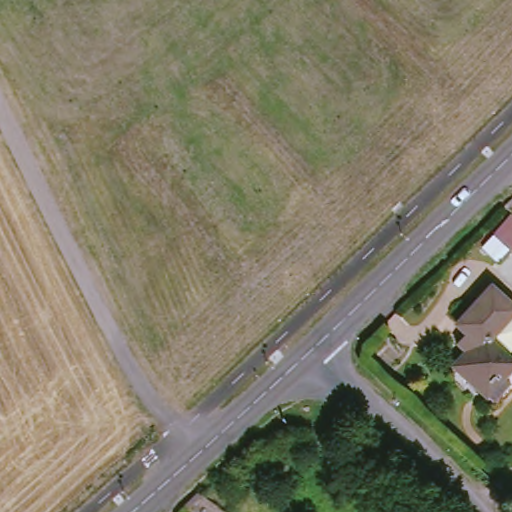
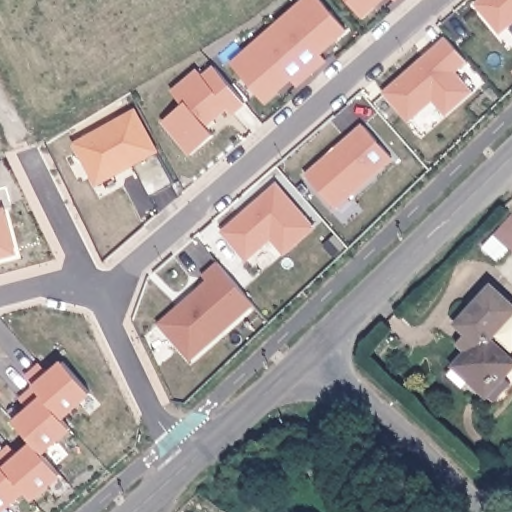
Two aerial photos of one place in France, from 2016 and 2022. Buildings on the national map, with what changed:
new [(303,0),(320,0),(346,30),(320,53),(326,60),(297,86),(291,79),(264,102),(231,64),(303,0)]
new [(362,17),(347,0),(382,0),(362,17)]
new [(495,26),(478,6),(485,0),(512,0),(512,22),(507,27),(495,26)]
new [(401,78),(404,79),(409,75),(408,73),(447,38),(467,61),(456,71),(474,92),(448,115),(433,99),(414,115),(404,114),(384,92),(401,78)]
new [(233,113),(228,107),(206,126),(214,135),(191,155),(163,121),(196,94),(185,81),(198,70),(203,76),(215,67),(246,103),(233,113)]
new [(185,81),(196,94),(183,104),(173,91),(185,81)]
new [(135,110),(175,183),(151,197),(131,160),(118,167),(116,172),(96,183),(74,143),(135,110)]
new [(364,125),(393,158),(335,208),(306,175),(321,162),(324,164),(329,160),(327,157),(364,125)]
new [(247,214),(253,214),(259,209),(254,205),(277,185),(314,227),(285,253),(271,237),(264,242),(264,245),(253,254),(241,254),(224,234),(247,214)]
new [(4,208),(18,254),(0,260),(0,209),(4,208)]
unchanged [(512,219),(512,256),(504,265),(484,249),(512,219)]
new [(187,306),(184,303),(208,282),(203,276),(218,263),(254,304),(191,359),(163,327),(187,306)]
unchanged [(512,319),(493,339),(512,357),(512,371),(511,372),(512,374),(512,385),(497,401),(484,389),(459,365),(473,350),(466,344),(475,335),(463,323),(497,286),(512,301),(512,319)]
new [(31,439),(14,420),(28,407),(19,398),(34,384),(26,375),(39,363),(50,372),(63,360),(93,394),(65,420),(73,429),(46,456),(31,439)]
new [(11,445),(19,452),(31,439),(46,456),(63,474),(33,499),(25,491),(2,512),(0,512),(0,455),(11,445)]

